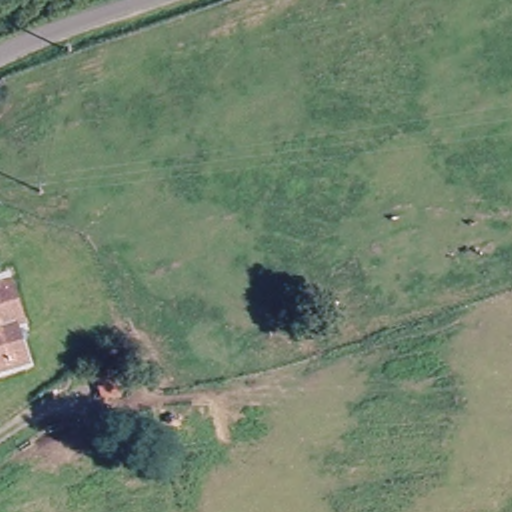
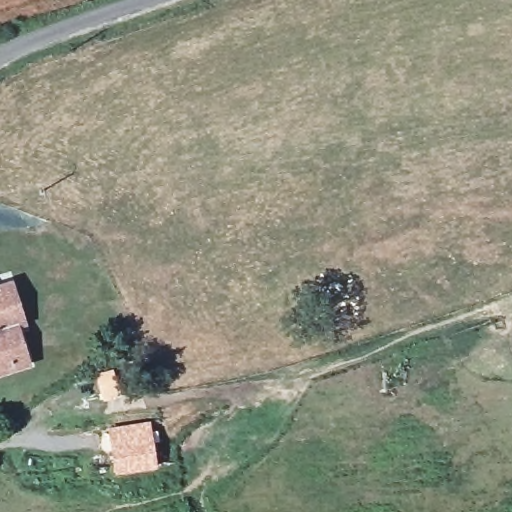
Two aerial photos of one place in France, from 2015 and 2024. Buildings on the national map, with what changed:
unchanged [(5,373),(6,373),(0,375),(0,292),(2,291),(14,329),(7,330),(19,368),(5,373)]
unchanged [(118,394),(104,399),(97,376),(111,371),(118,394)]
new [(150,420),(158,468),(114,474),(107,427),(150,420)]

